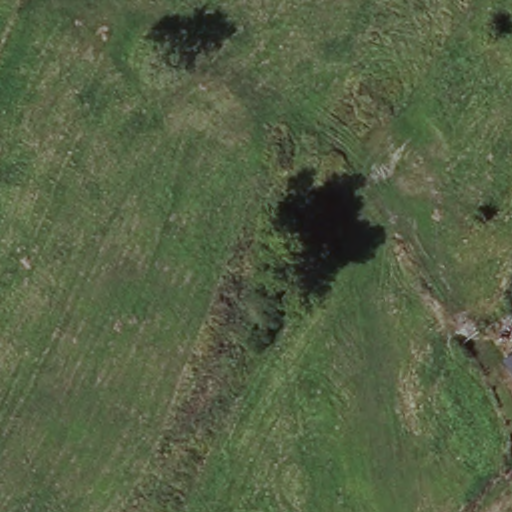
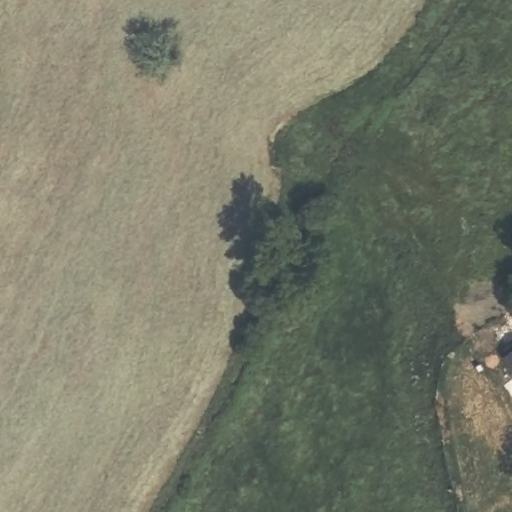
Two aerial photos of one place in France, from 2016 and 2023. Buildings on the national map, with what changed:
unchanged [(512,354),(512,371),(505,360),(512,354)]

